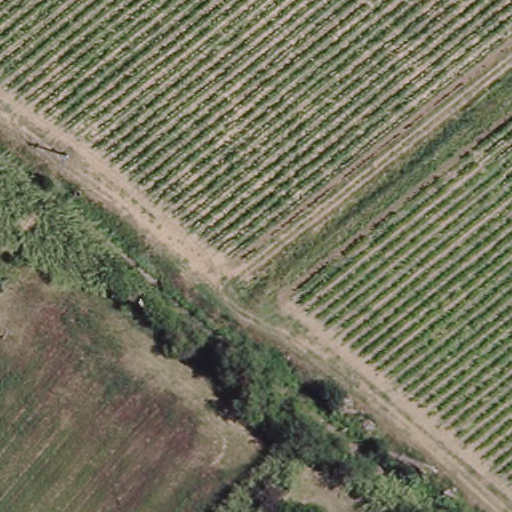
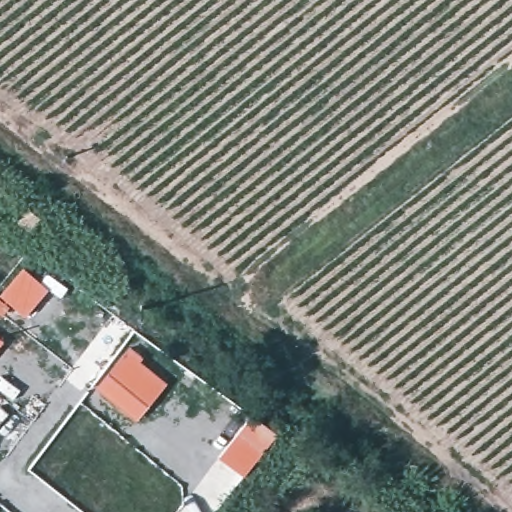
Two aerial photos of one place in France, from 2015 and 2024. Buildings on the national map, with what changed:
unchanged [(16,223),(5,215),(14,204),(24,212),(16,223)]
new [(129,346),(168,382),(136,422),(94,388),(129,346)]
new [(251,412),(277,432),(244,475),(219,456),(251,412)]

